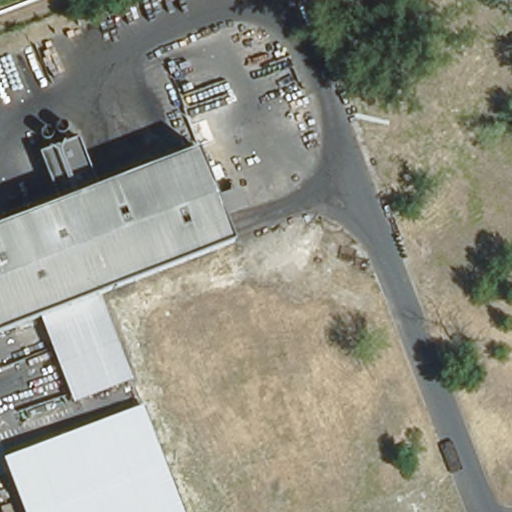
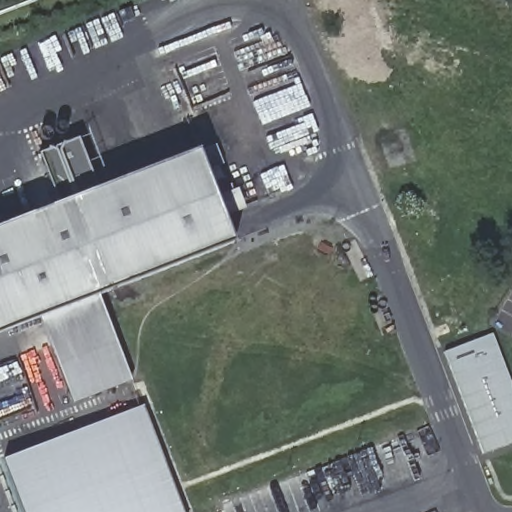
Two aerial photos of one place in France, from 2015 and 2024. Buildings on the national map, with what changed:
unchanged [(38,318),(0,334),(0,225),(50,204),(28,156),(71,135),(96,188),(193,149),(235,242),(101,294),(38,318)]
unchanged [(132,379),(70,403),(38,318),(101,294),(132,379)]
new [(493,333),(512,383),(512,443),(484,453),(444,351),(493,333)]
unchanged [(23,512),(2,459),(142,405),(184,512),(23,512)]

